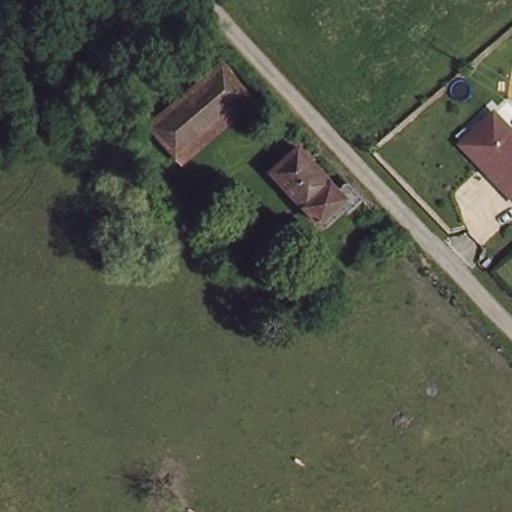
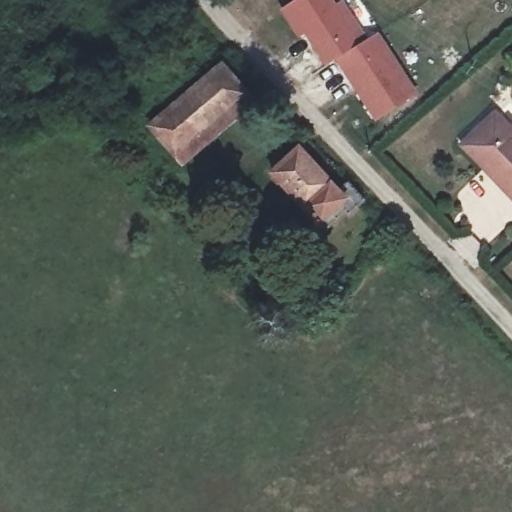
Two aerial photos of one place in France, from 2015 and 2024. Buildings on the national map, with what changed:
new [(375,122),(335,60),(326,66),(304,33),(297,39),(279,10),(294,0),(334,0),(336,2),(342,0),(343,0),(368,39),(378,32),(418,95),(375,122)]
unchanged [(231,63),(260,97),(188,157),(182,150),(155,119),(231,63)]
unchanged [(494,106),(512,124),(512,188),(461,137),(494,106)]
unchanged [(369,198),(333,227),(327,221),(324,224),(276,174),(304,150),(342,193),(355,184),(369,198)]

